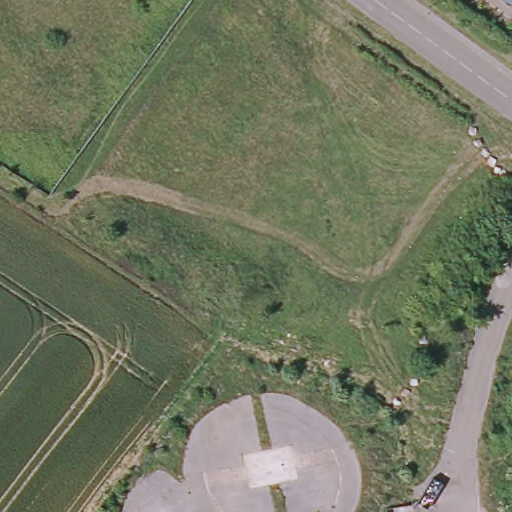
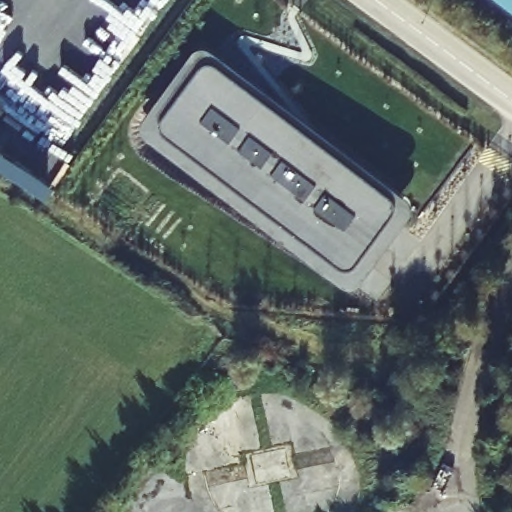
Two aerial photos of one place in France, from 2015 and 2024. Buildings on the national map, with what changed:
unchanged [(506,0),(512,0),(512,4),(506,0)]
new [(197,43),(415,195),(356,280),(143,124),(197,43)]
demolished [(287,446),(293,478),(254,485),(247,455),(287,446)]

